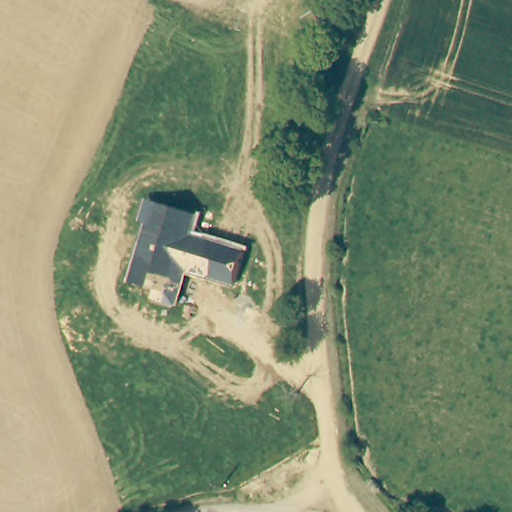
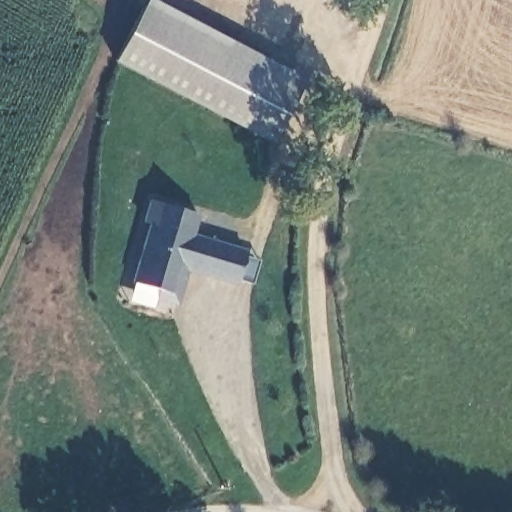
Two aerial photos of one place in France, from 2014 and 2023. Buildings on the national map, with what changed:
new [(305,80),(274,143),(113,61),(146,0),(154,0),(305,80)]
unchanged [(234,288),(187,275),(177,308),(151,301),(154,291),(127,282),(147,224),(138,222),(145,201),(200,214),(193,234),(245,250),(234,288)]

